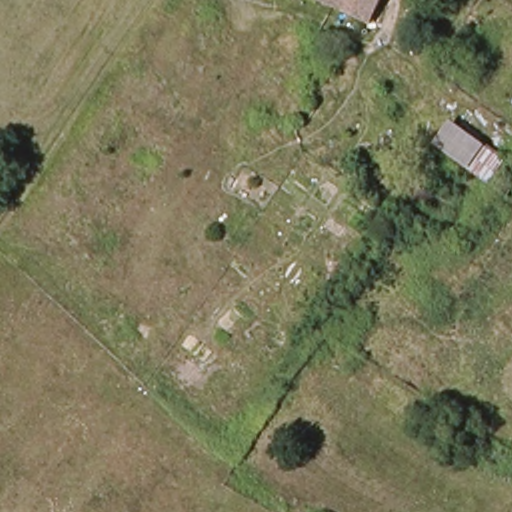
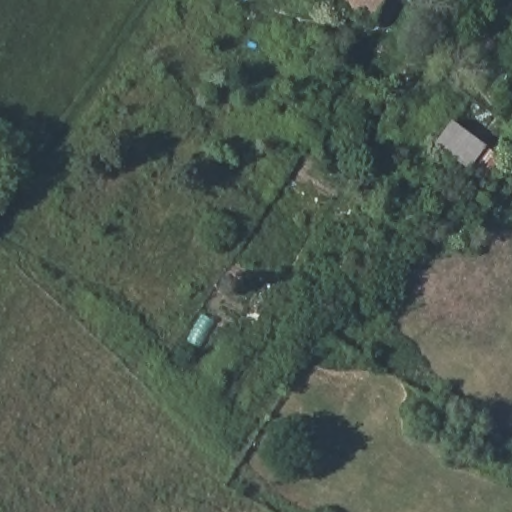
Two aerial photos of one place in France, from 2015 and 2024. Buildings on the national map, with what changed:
unchanged [(330,0),(377,0),(365,20),(330,0)]
unchanged [(468,169),(435,147),(452,119),(509,161),(482,195),(460,180),(468,169)]

